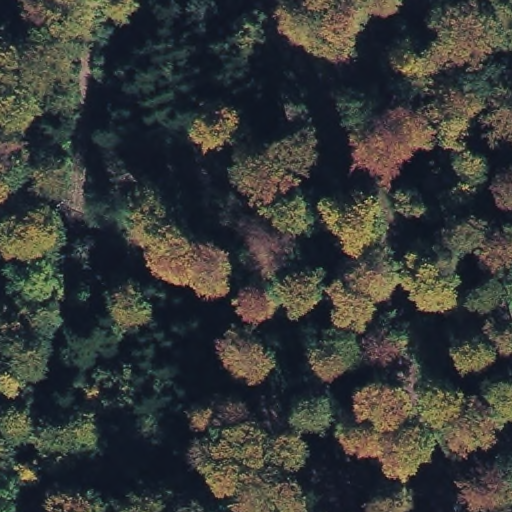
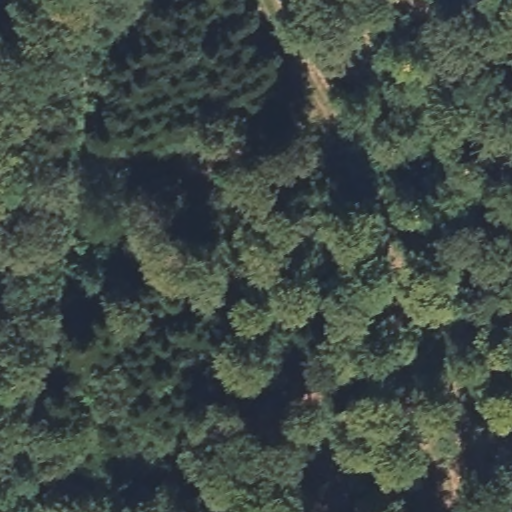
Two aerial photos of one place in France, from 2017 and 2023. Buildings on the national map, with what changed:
[]

